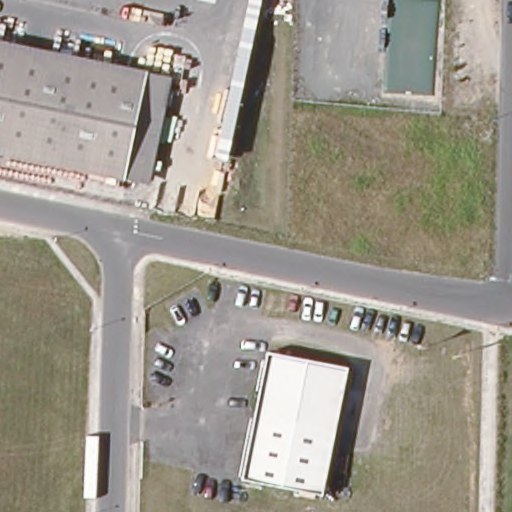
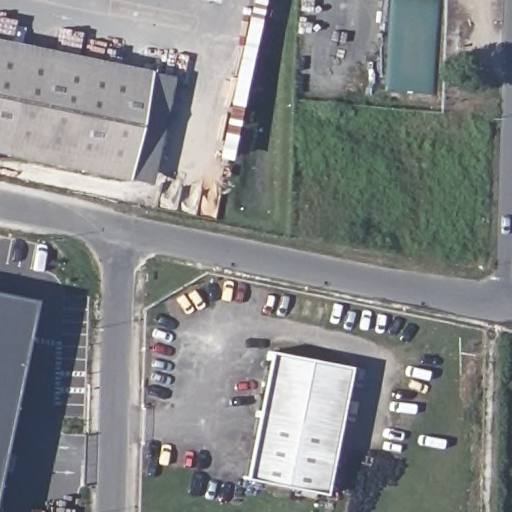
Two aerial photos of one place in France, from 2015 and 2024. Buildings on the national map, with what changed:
unchanged [(0,42),(87,59),(66,167),(0,153),(0,42)]
unchanged [(87,59),(167,76),(147,185),(66,167),(87,59)]
new [(0,294),(34,300),(0,458),(0,294)]
unchanged [(323,493),(242,478),(266,349),(347,365),(323,493)]

